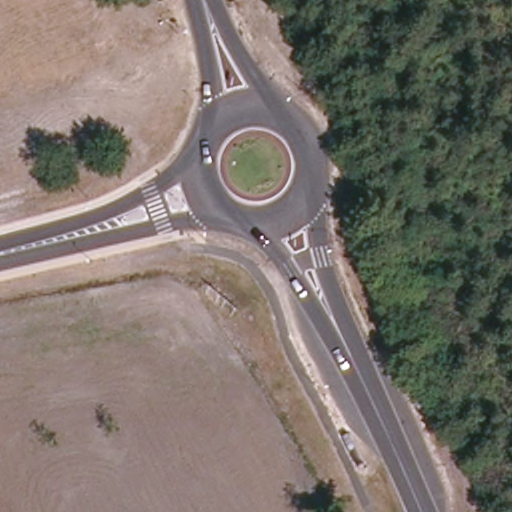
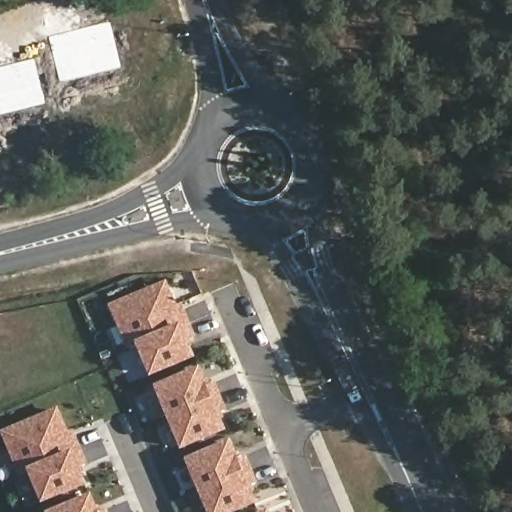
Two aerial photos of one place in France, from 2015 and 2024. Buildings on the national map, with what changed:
new [(111,22),(121,69),(61,84),(49,38),(111,22)]
new [(46,105),(0,116),(0,68),(35,59),(46,105)]
demolished [(42,97),(38,89),(34,81),(59,71),(61,79),(65,87),(42,97)]
new [(189,342),(196,358),(150,378),(137,347),(127,350),(108,303),(166,280),(177,305),(183,302),(196,337),(189,342)]
new [(220,415),(227,432),(181,451),(155,387),(201,368),(208,387),(217,383),(229,412),(220,415)]
new [(74,428),(88,467),(81,472),(87,485),(42,503),(30,472),(20,477),(0,431),(59,407),(69,430),(74,428)]
new [(249,486),(256,503),(237,512),(206,512),(183,459),(232,439),(238,454),(245,451),(257,481),(249,486)]
new [(46,512),(93,493),(99,512),(46,512)]
new [(269,509),(270,512),(261,512),(269,509)]
new [(106,510),(106,512),(99,512),(106,510)]

